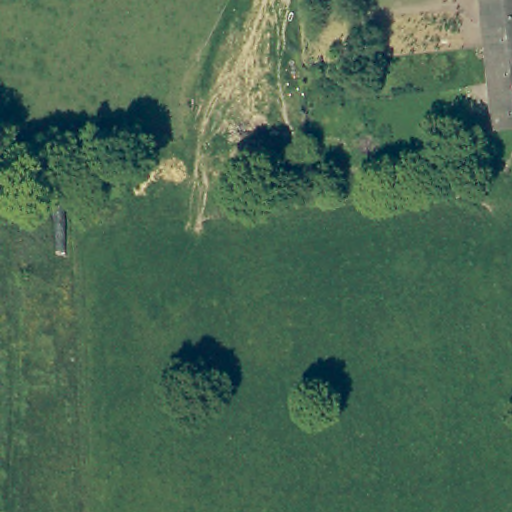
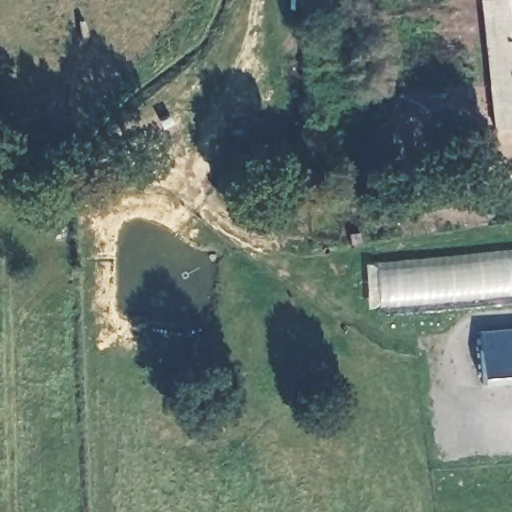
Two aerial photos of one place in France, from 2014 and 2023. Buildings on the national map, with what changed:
unchanged [(493,135),(480,0),(512,0),(512,132),(493,135)]
new [(379,266),(512,252),(512,297),(383,310),(379,266)]
new [(512,329),(512,381),(482,384),(478,332),(512,329)]

